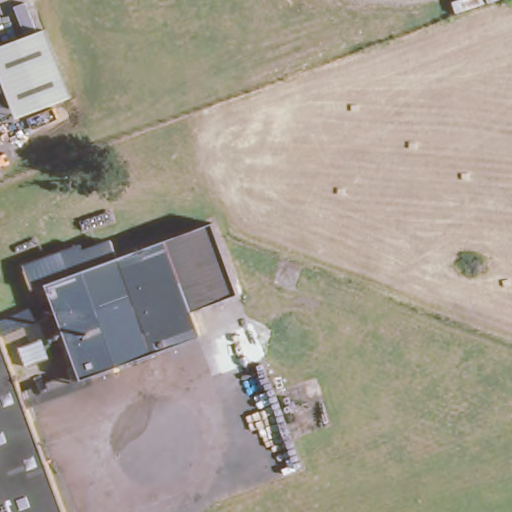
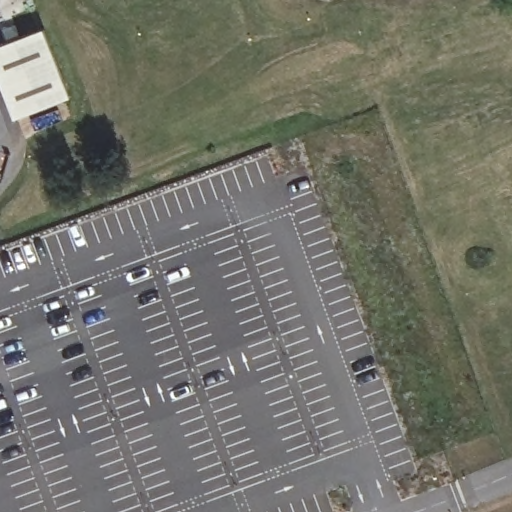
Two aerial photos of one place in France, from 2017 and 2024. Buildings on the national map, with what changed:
unchanged [(0,39),(42,22),(67,96),(13,115),(0,80),(0,39)]
demolished [(78,378),(42,280),(63,274),(56,244),(78,237),(82,245),(110,235),(116,253),(209,217),(236,292),(190,307),(198,333),(78,378)]
demolished [(0,512),(0,334),(62,512),(0,512)]

